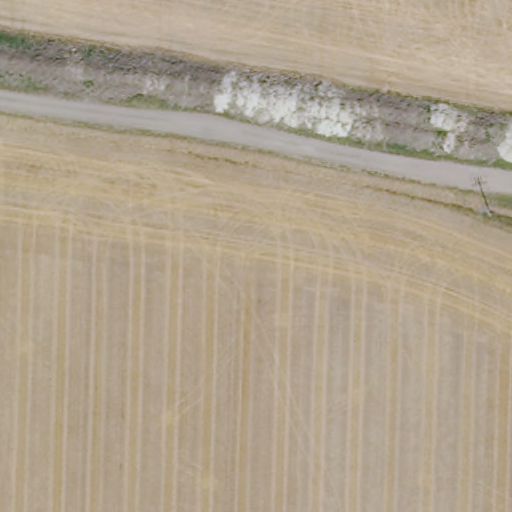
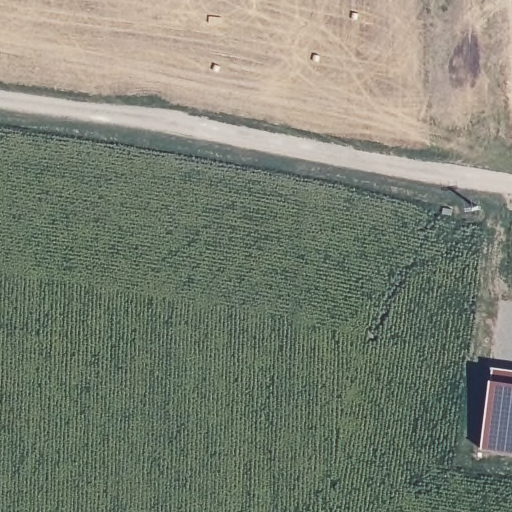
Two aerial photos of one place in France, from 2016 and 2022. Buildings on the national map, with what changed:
new [(512,372),(512,456),(480,451),(492,370),(512,372)]

